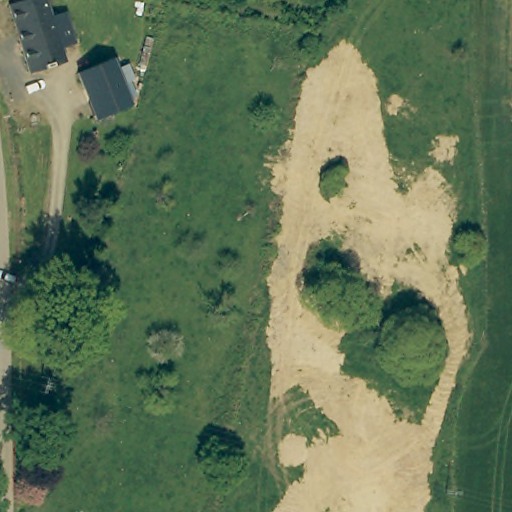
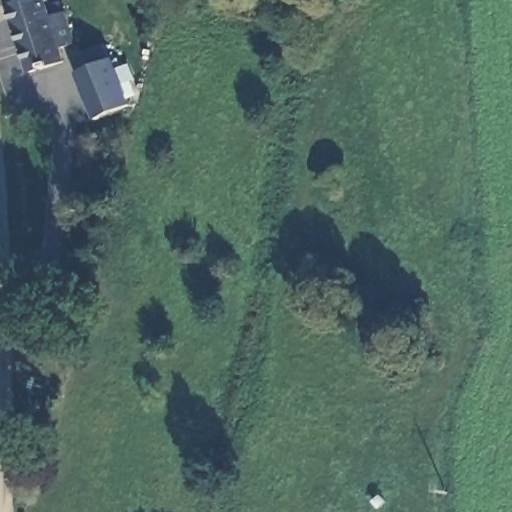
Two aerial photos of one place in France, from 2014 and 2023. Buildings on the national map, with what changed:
unchanged [(32,67),(14,2),(23,0),(50,0),(56,22),(65,58),(32,67)]
unchanged [(81,67),(112,57),(127,101),(103,109),(94,112),(81,67)]

